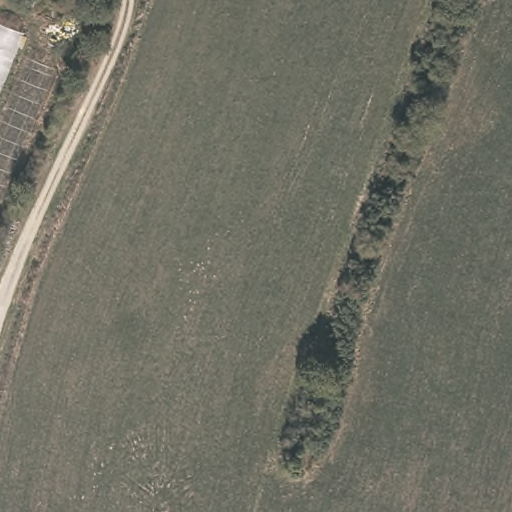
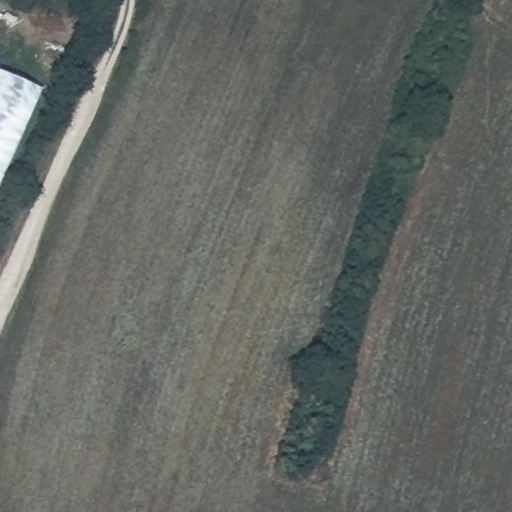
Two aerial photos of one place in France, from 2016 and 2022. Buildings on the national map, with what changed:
demolished [(0,89),(0,24),(24,32),(0,89)]
new [(0,179),(0,70),(40,87),(0,179)]
demolished [(0,194),(0,136),(21,144),(0,194)]

